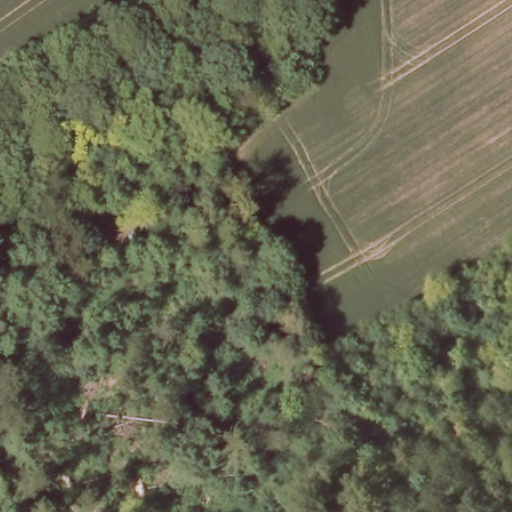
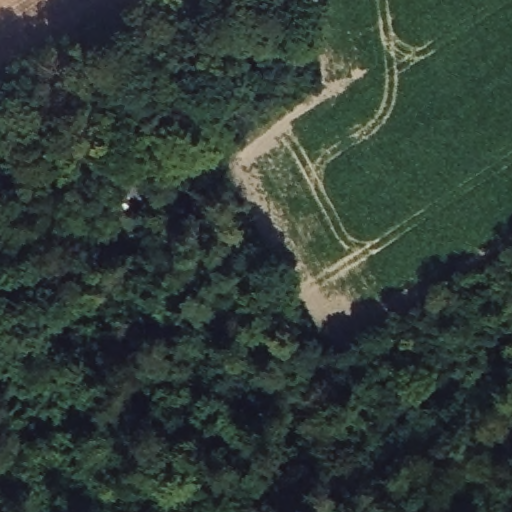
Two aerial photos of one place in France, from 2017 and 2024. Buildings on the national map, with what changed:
unchanged [(155,97),(145,113),(126,102),(135,85),(155,97)]

